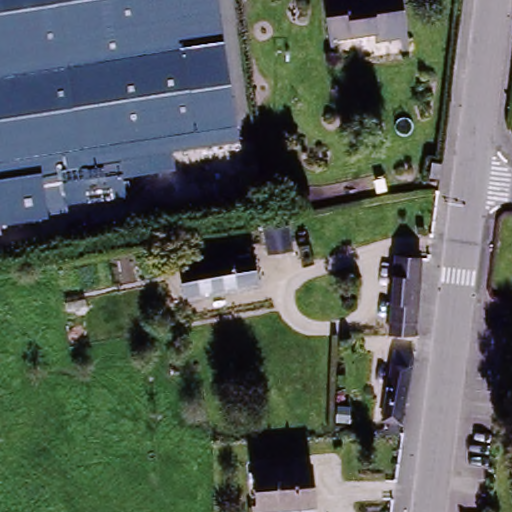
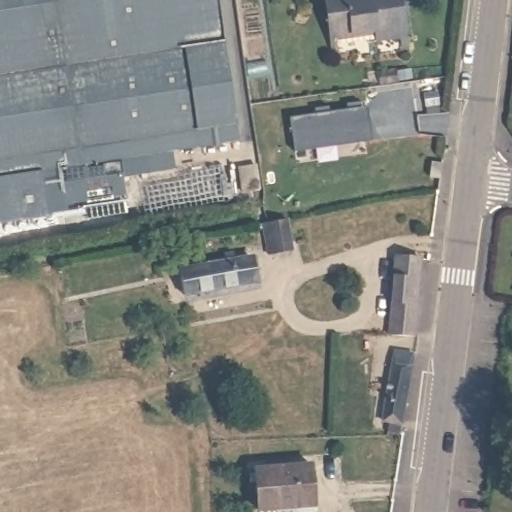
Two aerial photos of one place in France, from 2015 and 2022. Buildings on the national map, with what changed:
unchanged [(232,72),(240,121),(243,137),(244,143),(222,146),(38,170),(45,214),(0,222),(0,0),(220,0),(227,34),(232,72)]
unchanged [(376,44),(374,35),(330,42),(322,0),(395,0),(402,41),(376,44)]
new [(301,160),(296,112),(314,110),(314,105),(328,103),(328,109),(346,107),(345,101),(359,100),(361,117),(368,116),(372,152),(301,160)]
unchanged [(432,174),(434,159),(444,160),(442,176),(432,174)]
unchanged [(262,222),(266,221),(286,217),(291,247),(272,251),(267,252),(262,222)]
unchanged [(250,255),(254,280),(183,294),(179,269),(250,255)]
unchanged [(418,258),(412,320),(411,320),(409,335),(386,335),(394,255),(418,258)]
unchanged [(411,355),(402,407),(401,407),(396,434),(385,432),(386,423),(378,421),(392,350),(411,355)]
unchanged [(309,467),(313,507),(276,512),(256,512),(252,473),(309,467)]

